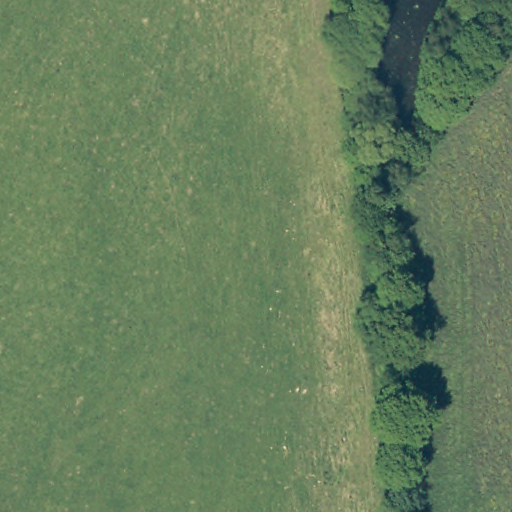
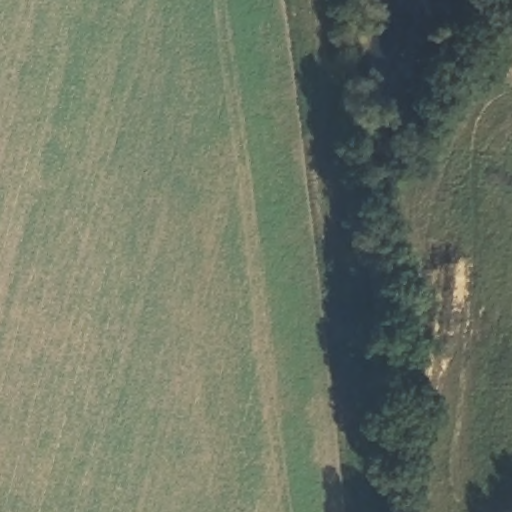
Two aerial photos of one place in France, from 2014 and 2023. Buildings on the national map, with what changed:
[]

